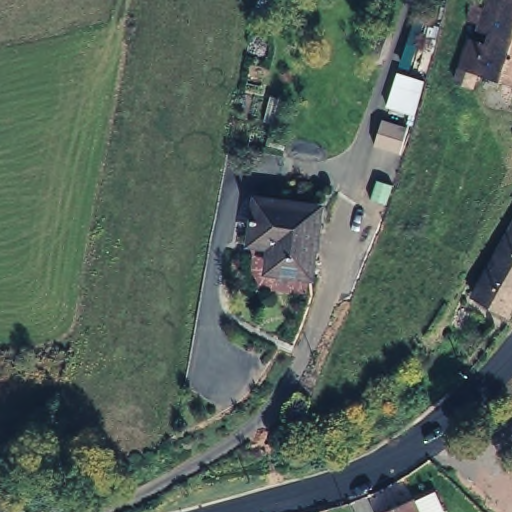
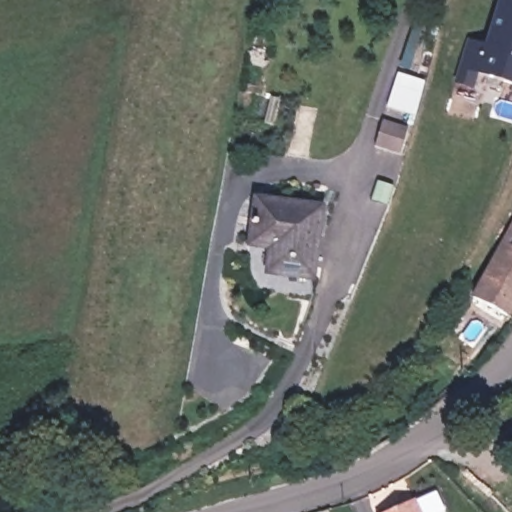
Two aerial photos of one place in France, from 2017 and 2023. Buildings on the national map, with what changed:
unchanged [(472,66),(466,82),(456,78),(470,37),(487,40),(490,28),(479,25),(481,20),(467,15),(472,0),(512,0),(512,79),(472,66)]
unchanged [(380,122),(404,127),(397,154),(373,148),(380,122)]
unchanged [(321,194),(311,261),(271,256),(274,232),(252,229),(258,186),(321,194)]
unchanged [(473,293),(512,224),(512,305),(508,312),(473,293)]
unchanged [(420,512),(372,512),(372,511),(413,495),(420,512)]

